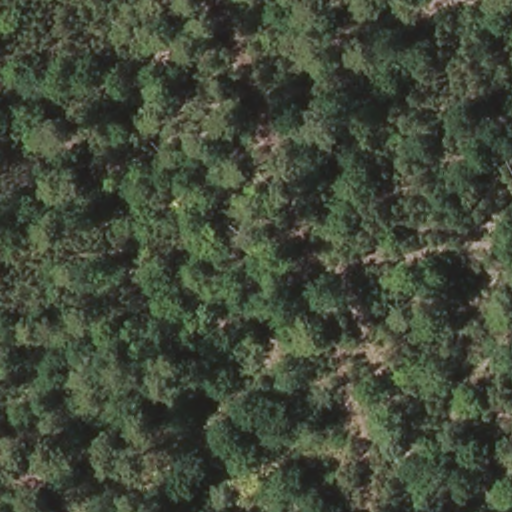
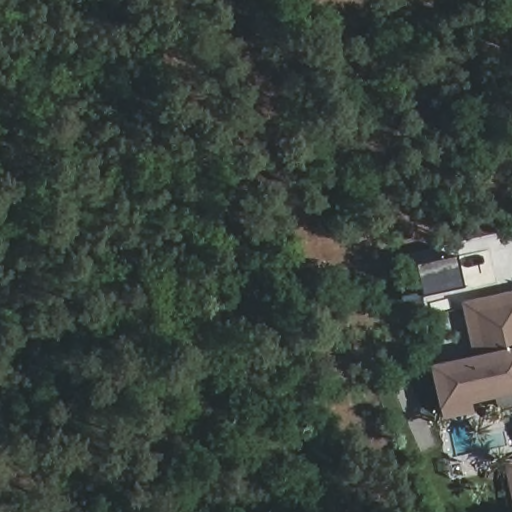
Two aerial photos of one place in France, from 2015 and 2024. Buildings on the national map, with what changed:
new [(462,256),(469,288),(427,297),(421,265),(462,256)]
new [(495,398),(471,403),(473,413),(441,419),(440,410),(431,366),(472,357),(461,302),(512,292),(512,407),(497,410),(495,398)]
new [(512,460),(512,507),(504,462),(512,460)]

